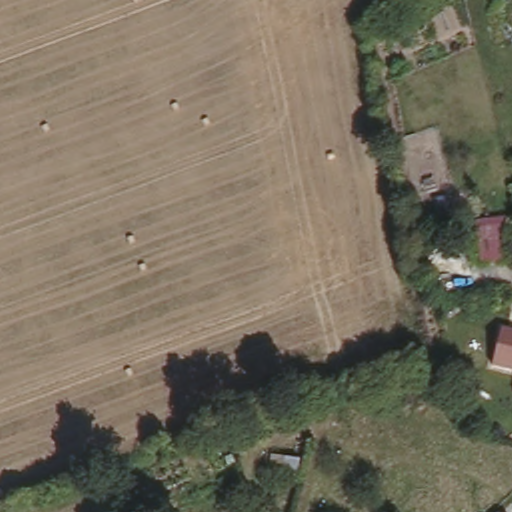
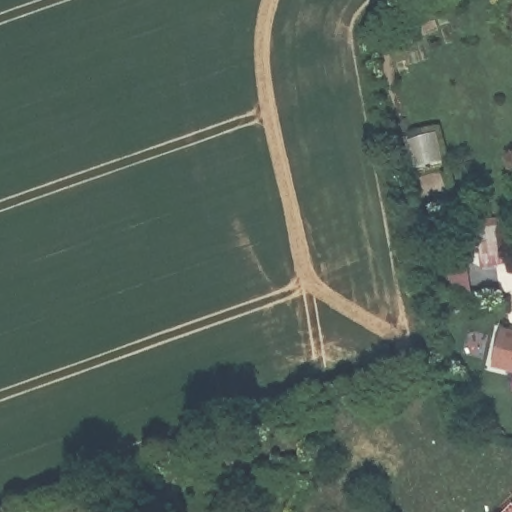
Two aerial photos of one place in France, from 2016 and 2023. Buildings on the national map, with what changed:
unchanged [(502,215),(510,262),(477,266),(473,220),(502,215)]
unchanged [(501,325),(512,327),(512,368),(493,365),(501,325)]
unchanged [(497,512),(500,510),(501,512),(497,512)]

